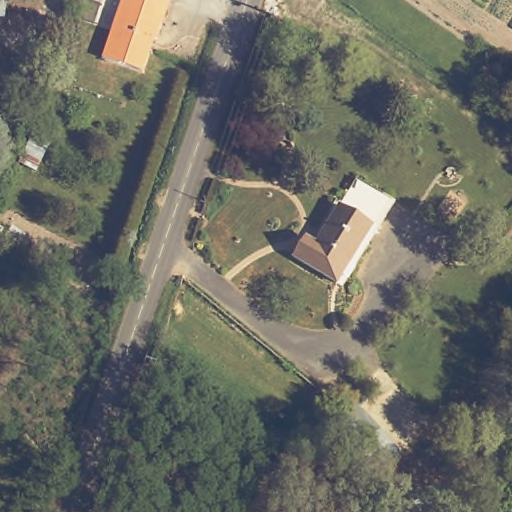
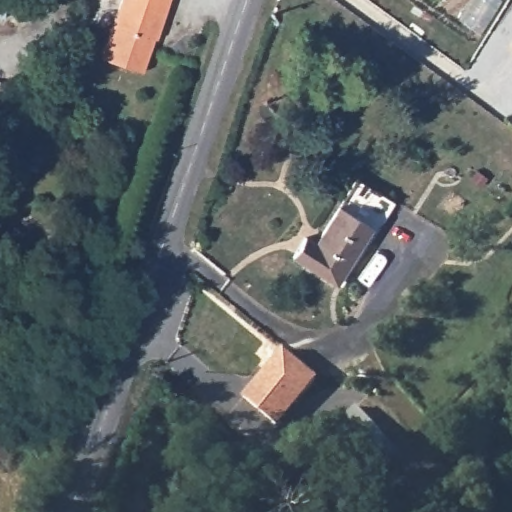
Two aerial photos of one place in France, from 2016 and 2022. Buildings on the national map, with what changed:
unchanged [(0,19),(0,0),(8,0),(5,19),(0,19)]
unchanged [(126,13),(130,0),(179,0),(171,26),(162,24),(126,13)]
unchanged [(162,42),(151,77),(110,63),(126,13),(162,24),(171,26),(165,43),(162,42)]
unchanged [(0,93),(0,84),(1,84),(0,93)]
unchanged [(346,292),(292,265),(305,239),(317,245),(352,179),(395,202),(346,292)]
new [(284,346),(317,376),(276,424),(243,396),(284,346)]

